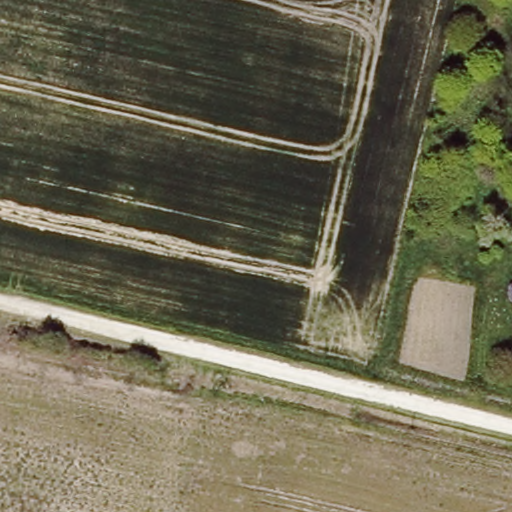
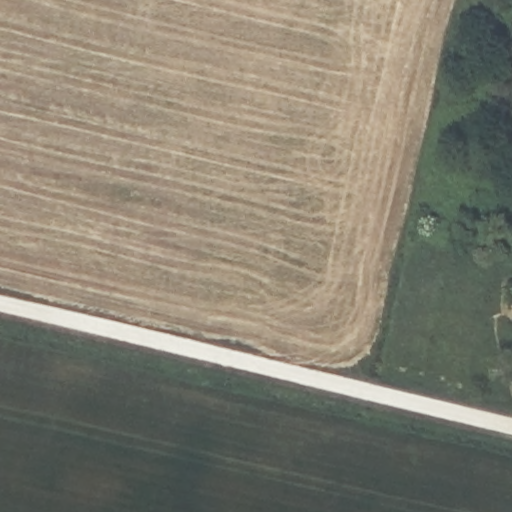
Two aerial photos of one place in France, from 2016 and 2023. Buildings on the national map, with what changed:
[]

